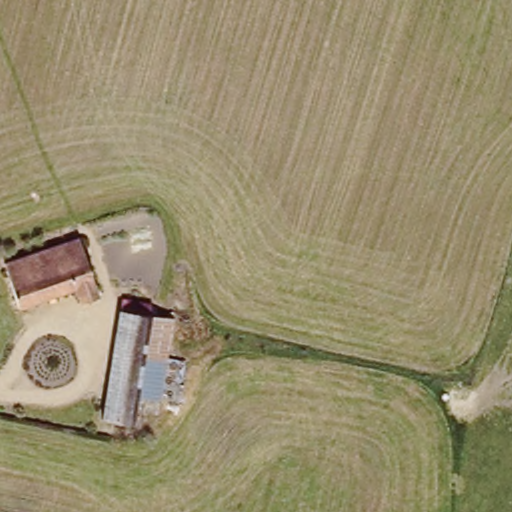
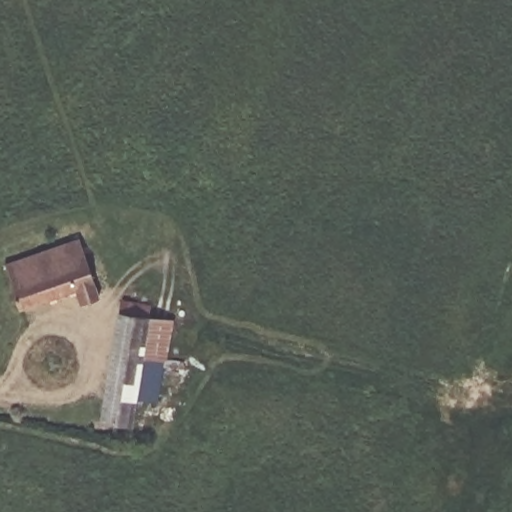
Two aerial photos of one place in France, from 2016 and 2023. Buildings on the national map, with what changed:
unchanged [(81,243),(86,241),(87,244),(105,296),(82,304),(76,289),(19,307),(7,266),(81,243)]
unchanged [(156,314),(136,425),(104,418),(124,309),(156,314)]

